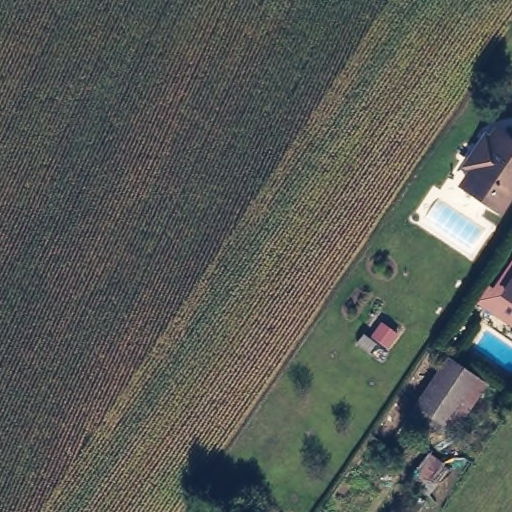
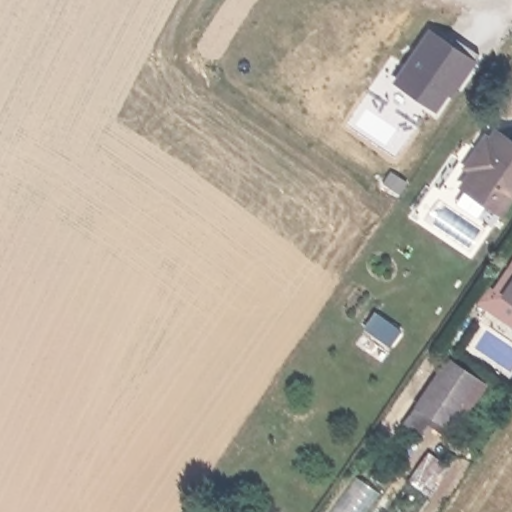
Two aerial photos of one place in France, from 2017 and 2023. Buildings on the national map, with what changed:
new [(394,81),(432,29),(479,61),(454,99),(450,96),(438,112),(394,81)]
unchanged [(512,137),(512,199),(505,210),(469,184),(479,171),(467,162),(487,134),(492,139),(500,128),(512,137)]
new [(390,174),(406,185),(398,195),(382,185),(390,174)]
unchanged [(502,295),(512,281),(512,303),(502,295)]
unchanged [(455,430),(447,423),(434,412),(420,430),(405,417),(450,362),(479,385),(486,391),(455,430)]

